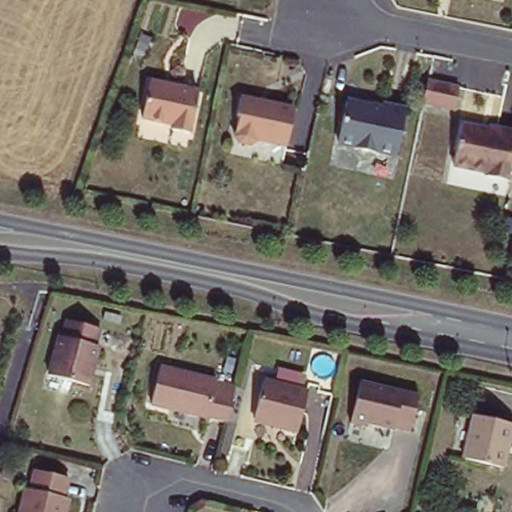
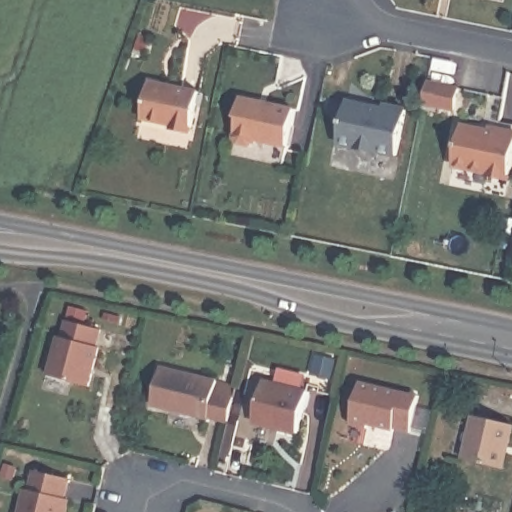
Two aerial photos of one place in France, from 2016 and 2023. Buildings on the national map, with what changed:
unchanged [(458,88),(453,110),(421,103),(426,81),(458,88)]
unchanged [(199,92),(190,132),(172,128),(173,123),(143,118),(150,82),(199,92)]
unchanged [(295,104),(285,148),(234,137),(239,112),(237,111),(241,93),(295,104)]
unchanged [(382,111),(383,106),(404,110),(395,155),(372,151),(372,156),(352,151),(353,146),(336,143),(345,102),(382,111)]
unchanged [(493,131),(494,126),(512,130),(512,149),(505,180),(483,175),(484,171),(451,163),(459,123),(493,131)]
unchanged [(96,331),(92,345),(96,346),(87,385),(46,376),(54,337),(56,337),(59,322),(96,331)]
unchanged [(153,403),(161,367),(235,386),(227,422),(153,403)]
unchanged [(301,390),(291,432),(273,428),(274,423),(249,418),(257,381),(301,390)]
unchanged [(417,399),(409,431),(393,428),(392,431),(367,425),(367,428),(349,424),(359,385),(417,399)]
unchanged [(508,424),(497,468),(458,459),(468,414),(508,424)]
unchanged [(64,498),(68,499),(65,512),(19,512),(25,489),(30,491),(34,471),(68,479),(64,498)]

